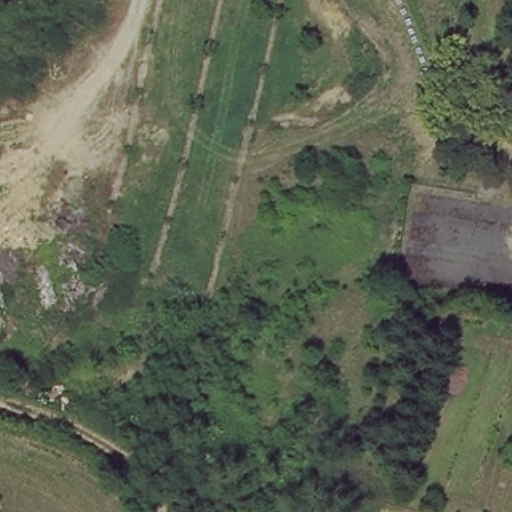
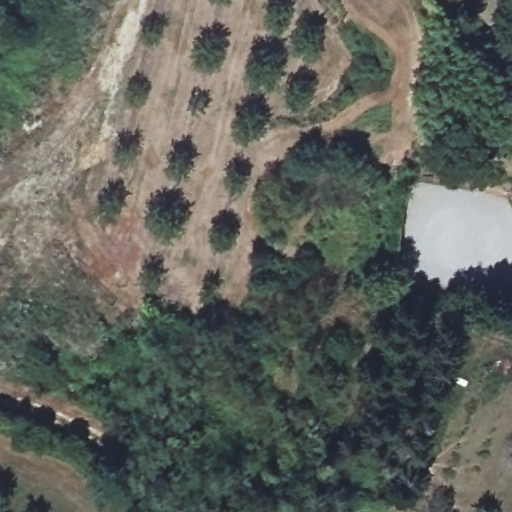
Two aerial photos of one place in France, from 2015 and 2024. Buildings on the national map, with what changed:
[]

